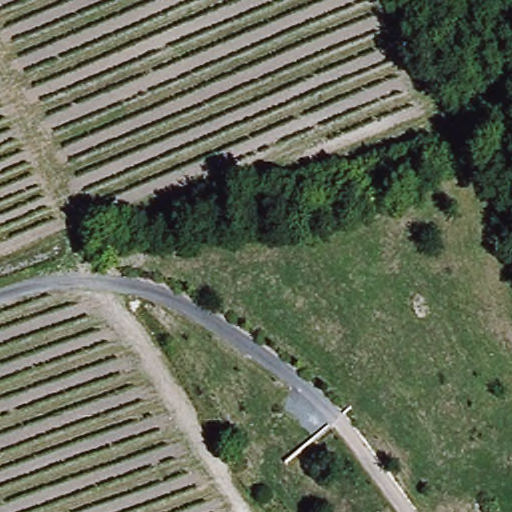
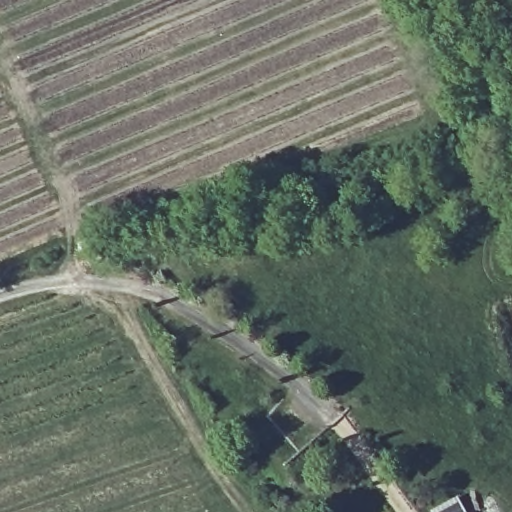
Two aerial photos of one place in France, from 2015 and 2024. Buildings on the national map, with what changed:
new [(431,511),(457,497),(465,512),(431,512),(431,511)]

